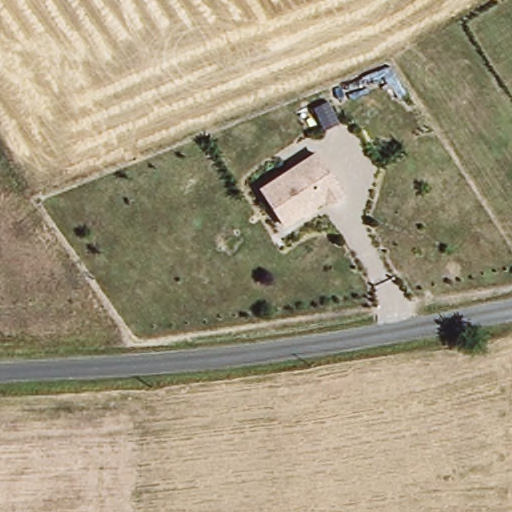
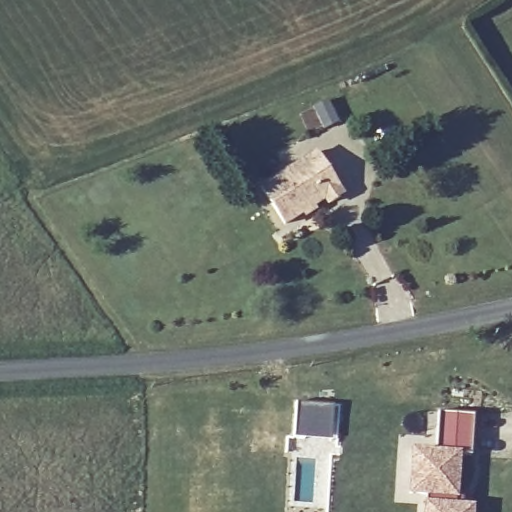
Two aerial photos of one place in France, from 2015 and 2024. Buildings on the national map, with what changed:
unchanged [(316,155),(345,201),(327,211),(323,205),(284,230),(260,189),(316,155)]
new [(297,404),(334,406),(332,440),(296,438),(297,404)]
new [(476,413),(473,452),(462,452),(458,504),(474,505),(473,512),(425,512),(426,498),(410,497),(413,447),(437,449),(439,412),(476,413)]

